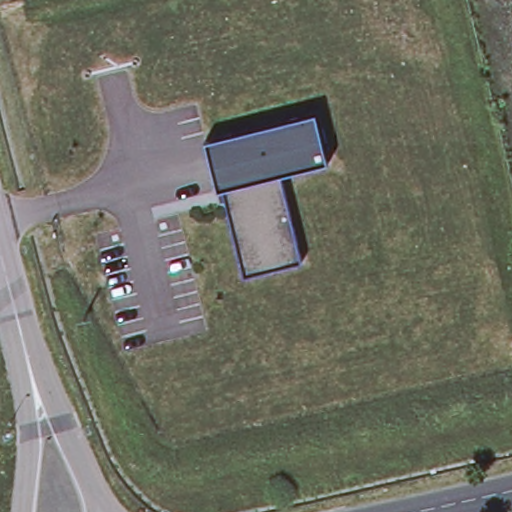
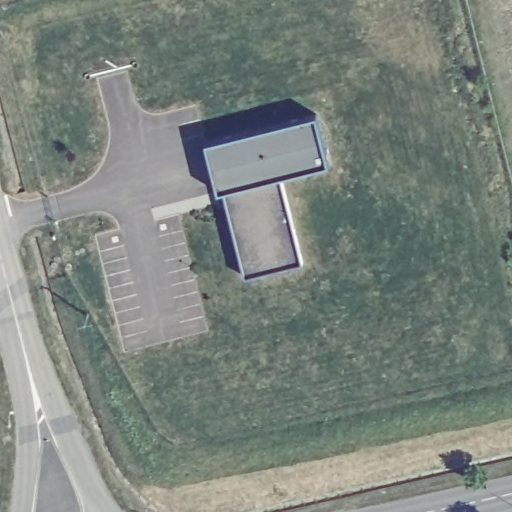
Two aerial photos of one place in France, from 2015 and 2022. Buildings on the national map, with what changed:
unchanged [(316,110),(329,160),(280,173),(302,258),(244,273),(222,187),(217,189),(204,139),(316,110)]

